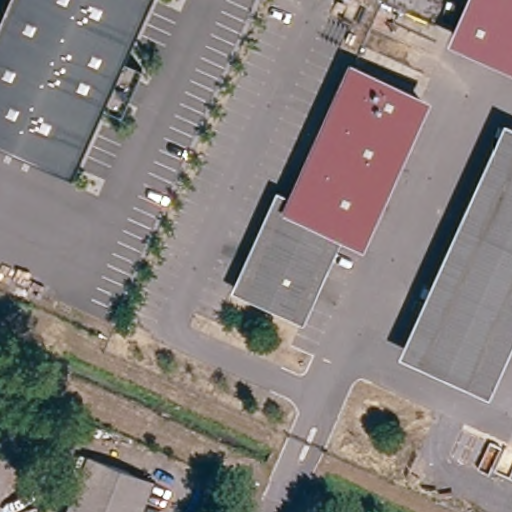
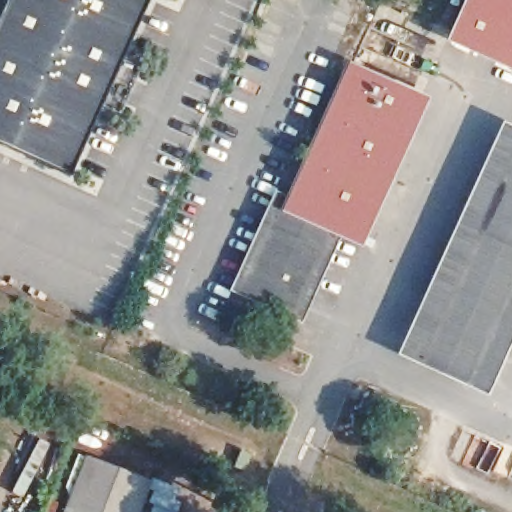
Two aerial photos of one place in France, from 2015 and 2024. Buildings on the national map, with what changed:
unchanged [(115,84),(104,110),(72,179),(0,146),(0,22),(10,0),(153,0),(125,63),(115,84)]
unchanged [(463,0),(512,0),(512,57),(450,29),(463,0)]
unchanged [(125,63),(143,71),(122,118),(104,110),(115,84),(125,63)]
unchanged [(277,200),(286,205),(348,67),(419,99),(357,236),(333,225),(296,309),(240,283),(277,200)]
unchanged [(497,114),(512,120),(512,335),(487,390),(392,347),(497,114)]
unchanged [(149,482),(137,512),(68,512),(88,459),(149,482)]

